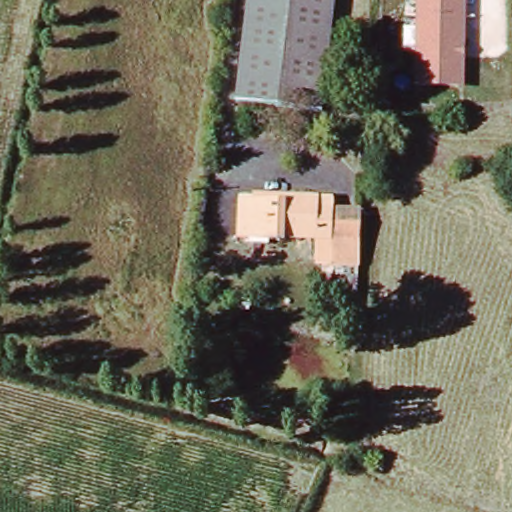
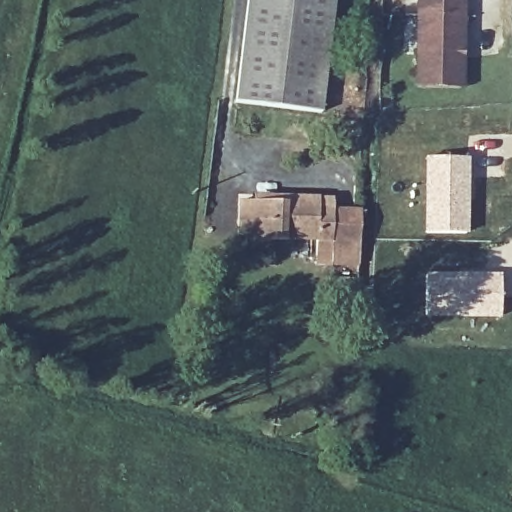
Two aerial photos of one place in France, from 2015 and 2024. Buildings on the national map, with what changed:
unchanged [(324,112),(237,102),(247,0),(336,0),(324,112)]
unchanged [(414,87),(416,0),(466,0),(464,87),(414,87)]
new [(423,157),(469,157),(468,234),(423,235),(423,157)]
unchanged [(332,199),(332,209),(362,211),(356,308),(317,312),(317,239),(242,239),(239,196),(332,199)]
new [(501,272),(501,318),(424,318),(423,272),(501,272)]

